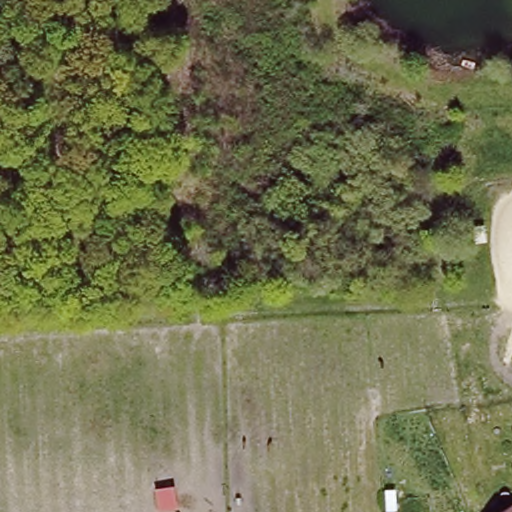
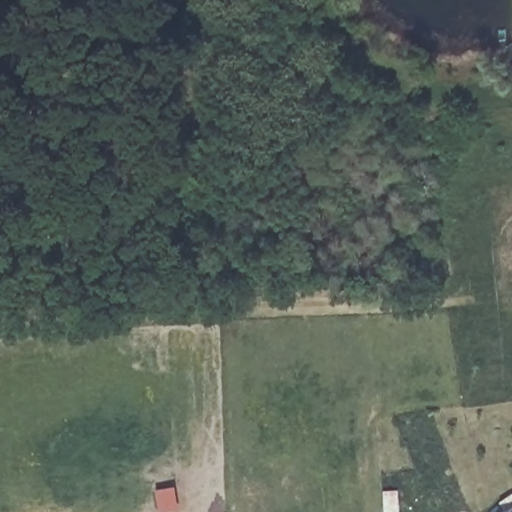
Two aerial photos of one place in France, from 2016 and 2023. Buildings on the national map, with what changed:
unchanged [(495,512),(512,500),(512,512),(495,512)]

